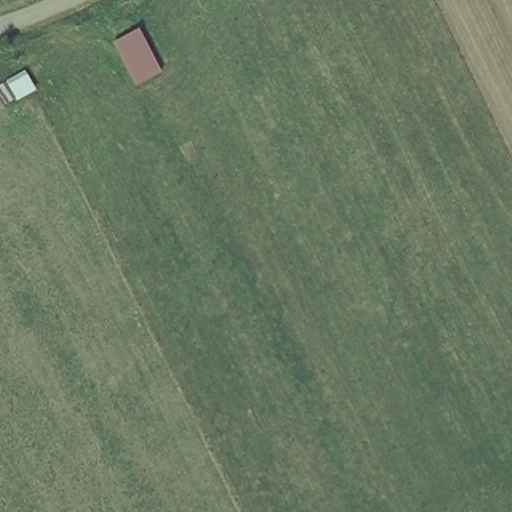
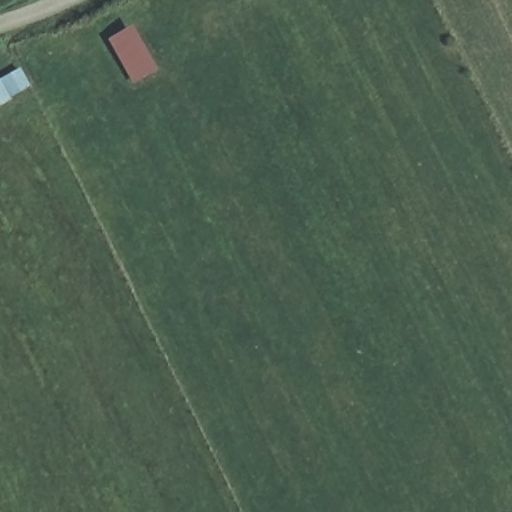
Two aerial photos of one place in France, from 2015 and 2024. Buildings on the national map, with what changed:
unchanged [(138,26),(161,72),(137,86),(110,41),(138,26)]
unchanged [(36,89),(0,111),(0,83),(25,68),(36,89)]

